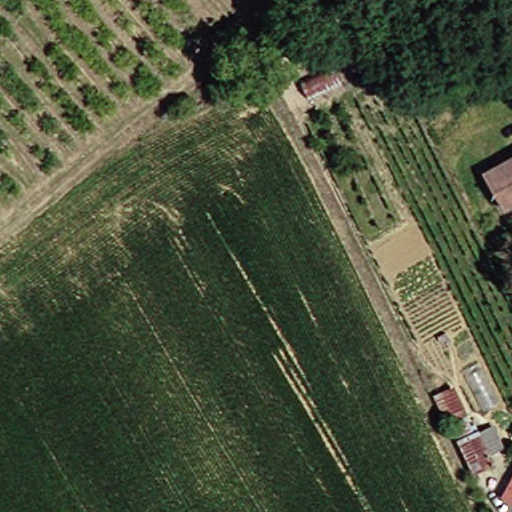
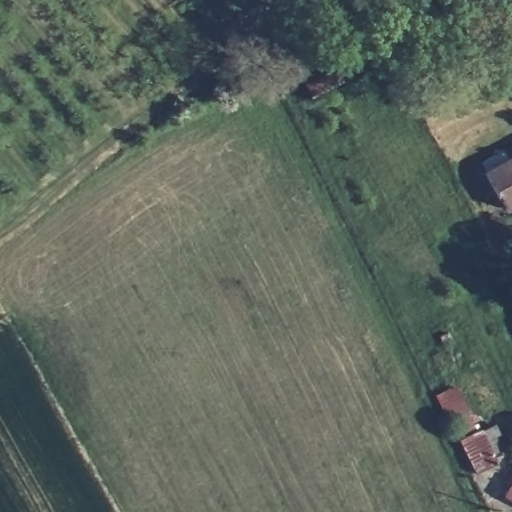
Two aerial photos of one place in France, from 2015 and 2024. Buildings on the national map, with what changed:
unchanged [(320,100),(307,72),(332,61),(344,90),(320,100)]
unchanged [(512,155),(512,202),(500,209),(479,173),(512,155)]
unchanged [(433,397),(451,387),(474,435),(495,426),(504,443),(484,455),(490,466),(473,473),(433,397)]
unchanged [(512,479),(512,501),(502,495),(512,479)]

